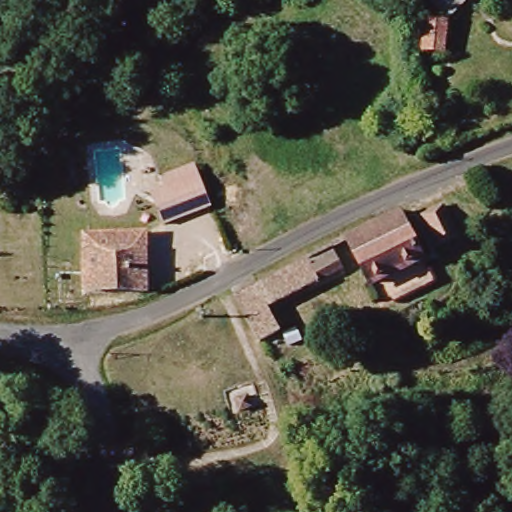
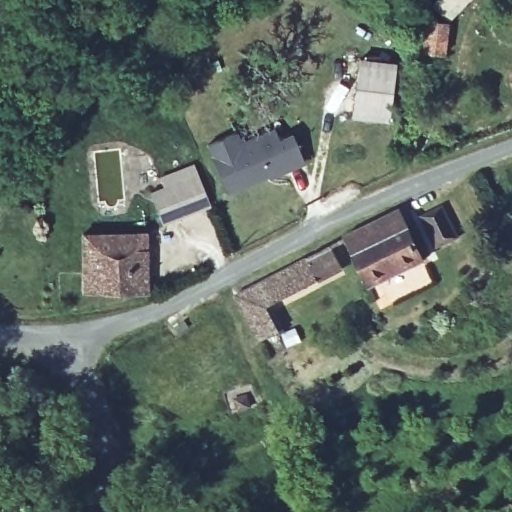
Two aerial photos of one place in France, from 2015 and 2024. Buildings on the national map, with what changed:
unchanged [(443,10),(434,0),(454,0),(443,10)]
unchanged [(420,51),(423,15),(442,16),(440,53),(420,51)]
new [(358,58),(397,62),(390,122),(349,118),(358,58)]
new [(237,133),(240,142),(274,129),(279,141),(294,136),(304,162),(290,169),(288,165),(228,193),(207,144),(237,133)]
unchanged [(160,176),(194,163),(212,207),(164,225),(151,191),(164,186),(160,176)]
unchanged [(431,249),(415,219),(436,207),(452,238),(431,249)]
unchanged [(363,287),(340,240),(394,212),(418,262),(385,279),(384,277),(363,287)]
unchanged [(142,229),(144,285),(83,287),(81,231),(142,229)]
unchanged [(276,332),(254,341),(237,296),(328,246),(339,270),(267,309),(276,332)]

